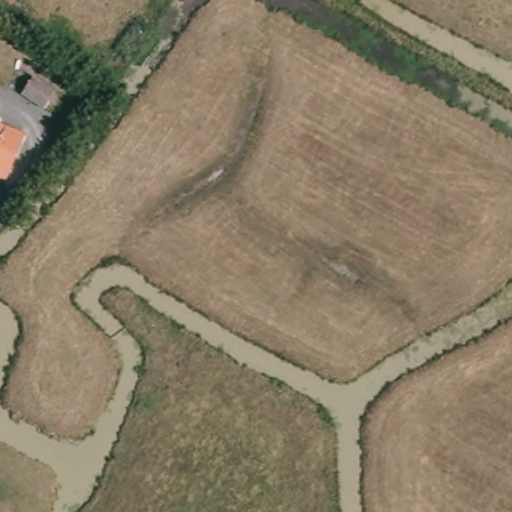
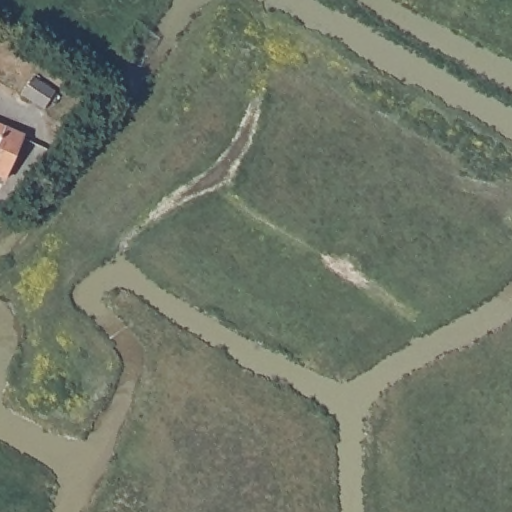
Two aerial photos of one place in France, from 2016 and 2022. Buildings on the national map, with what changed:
unchanged [(35,69),(61,84),(55,94),(49,105),(25,90),(31,77),(35,69)]
unchanged [(8,180),(0,177),(0,123),(26,134),(8,180)]

